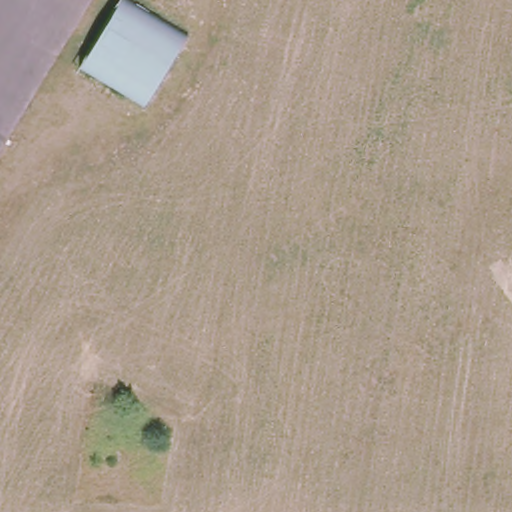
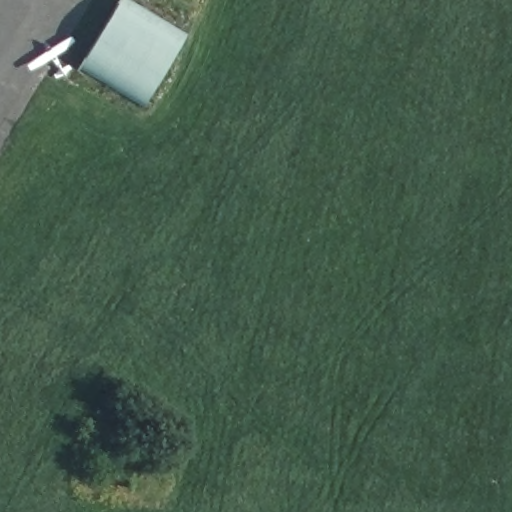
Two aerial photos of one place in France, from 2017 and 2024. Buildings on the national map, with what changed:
unchanged [(130,0),(195,39),(150,114),(87,75),(130,0)]

